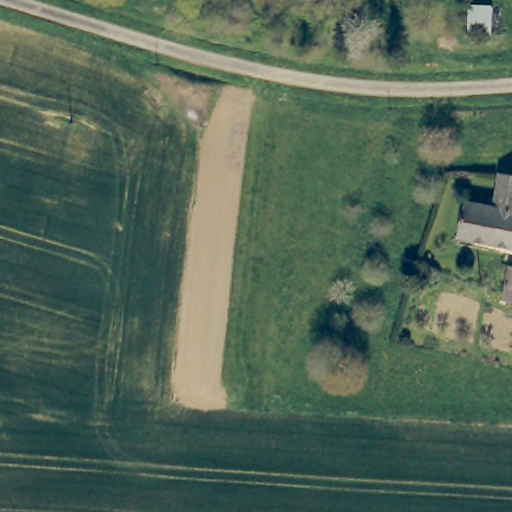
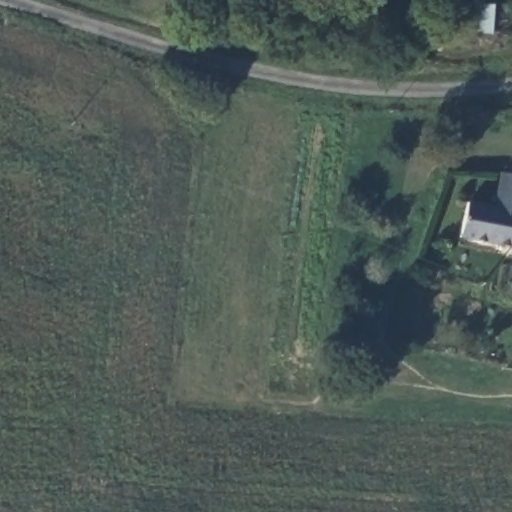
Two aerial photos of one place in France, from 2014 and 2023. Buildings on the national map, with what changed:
unchanged [(512,174),(512,244),(466,236),(472,202),(500,207),(505,173),(512,174)]

